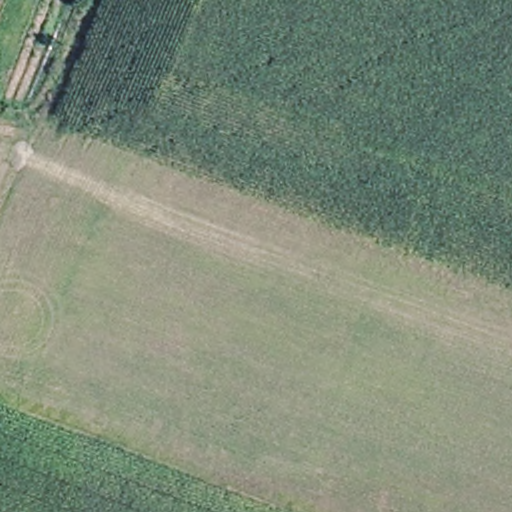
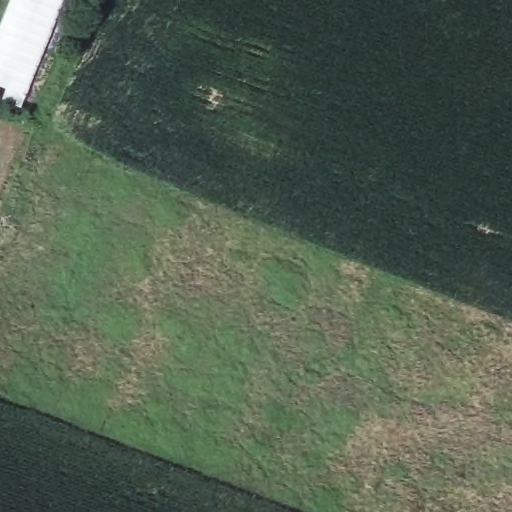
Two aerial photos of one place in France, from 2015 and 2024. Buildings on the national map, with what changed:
new [(0,28),(11,0),(62,0),(24,94),(0,85),(0,28)]

